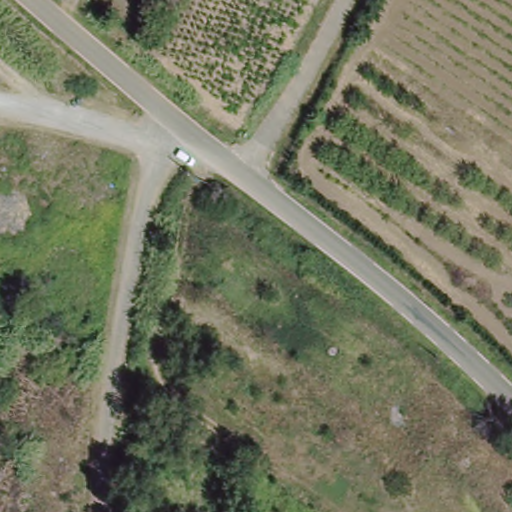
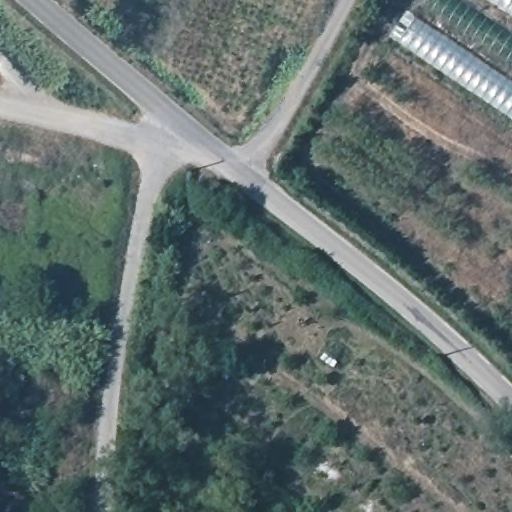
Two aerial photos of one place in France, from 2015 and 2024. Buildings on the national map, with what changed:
new [(416,4),(419,0),(457,0),(512,37),(512,68),(416,4)]
new [(484,0),(512,0),(512,19),(484,0)]
new [(401,48),(418,23),(512,86),(512,122),(401,48)]

